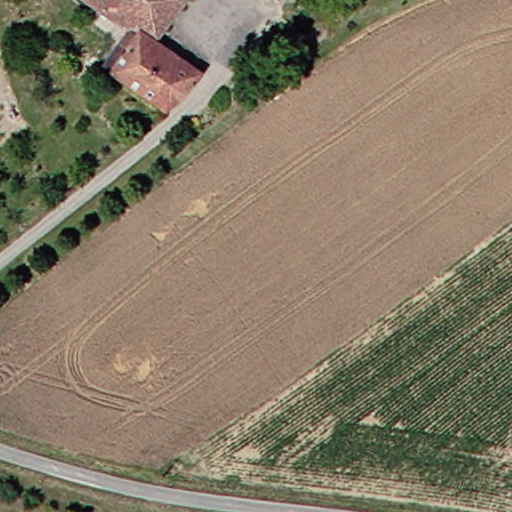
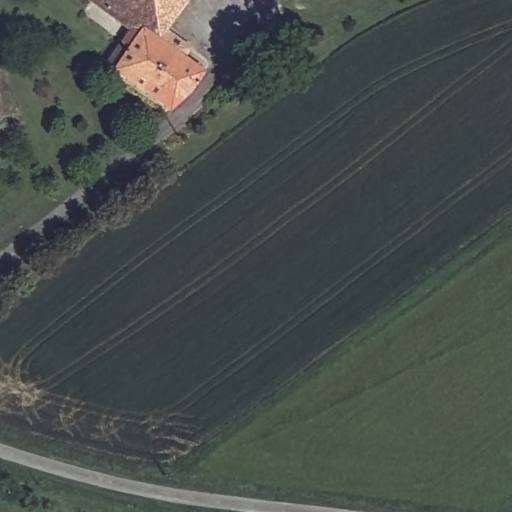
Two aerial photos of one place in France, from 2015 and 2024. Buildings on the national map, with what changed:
unchanged [(83,0),(149,0),(120,31),(83,0)]
unchanged [(149,0),(165,0),(170,4),(173,0),(188,0),(153,41),(135,29),(128,39),(120,31),(149,0)]
unchanged [(165,0),(173,0),(170,4),(165,0)]
unchanged [(104,78),(128,39),(135,29),(153,41),(202,69),(194,89),(160,113),(104,78)]

